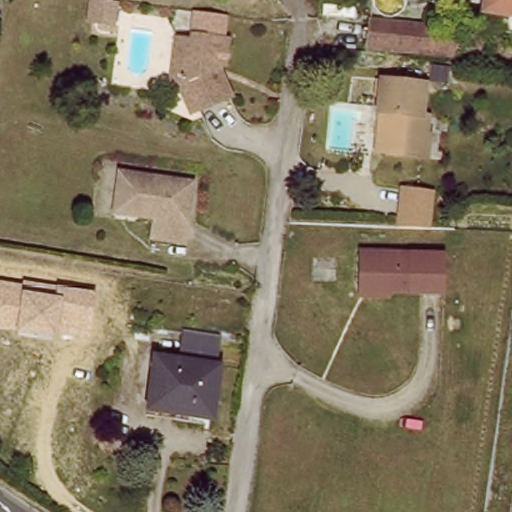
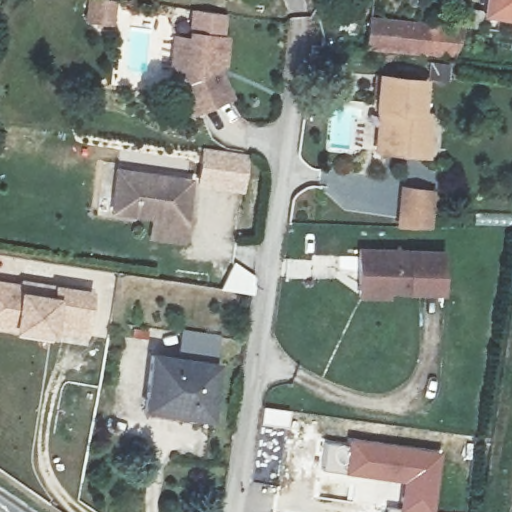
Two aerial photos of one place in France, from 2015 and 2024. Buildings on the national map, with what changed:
new [(127,25),(105,22),(109,0),(127,0),(130,0),(127,25)]
unchanged [(485,7),(486,0),(512,0),(512,13),(485,7)]
unchanged [(178,73),(173,72),(180,34),(195,35),(197,27),(202,28),(205,9),(236,14),(233,32),(227,61),(220,63),(222,74),(229,73),(235,92),(202,106),(191,110),(178,73)]
unchanged [(375,21),(431,30),(450,23),(445,48),(370,40),(375,21)]
unchanged [(381,108),(387,75),(429,81),(424,114),(434,117),(427,155),(387,149),(375,148),(381,108)]
new [(214,153),(256,159),(251,194),(209,188),(214,153)]
unchanged [(188,174),(178,235),(146,230),(149,210),(134,208),(135,197),(110,193),(115,163),(188,174)]
new [(437,198),(437,230),(407,230),(407,198),(437,198)]
unchanged [(364,291),(363,278),(363,245),(447,245),(447,286),(392,286),(392,291),(364,291)]
new [(223,292),(237,265),(257,279),(256,298),(223,292)]
unchanged [(21,279),(57,284),(57,287),(92,292),(87,339),(57,335),(57,339),(16,334),(16,332),(0,330),(0,280),(20,283),(21,279)]
unchanged [(220,360),(212,423),(145,415),(153,350),(220,360)]
new [(398,510),(403,481),(323,468),(327,443),(348,446),(350,439),(442,452),(434,512),(389,512),(389,509),(398,510)]

